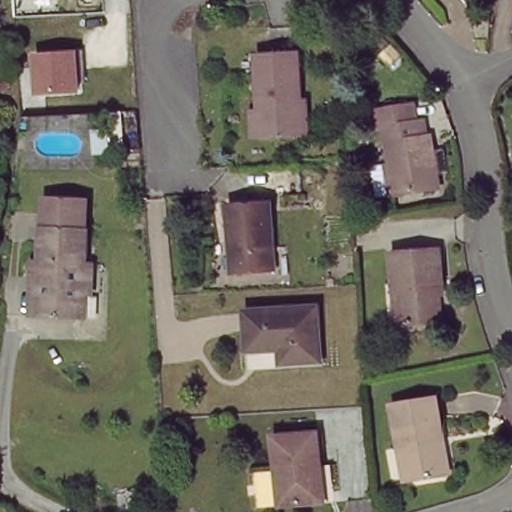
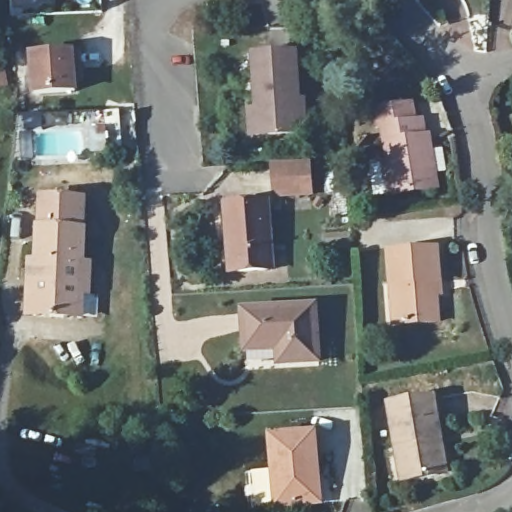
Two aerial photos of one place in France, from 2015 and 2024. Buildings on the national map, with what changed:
unchanged [(360,0),(361,2),(351,8),(346,0),(360,0)]
unchanged [(376,50),(371,45),(380,38),(390,48),(387,50),(381,56),(376,50)]
unchanged [(30,51),(76,48),(77,93),(32,95),(30,51)]
unchanged [(244,114),(252,113),(248,52),(285,50),(289,108),(299,108),(301,134),(261,136),(245,137),(244,114)]
unchanged [(372,198),(371,187),(368,164),(390,161),(388,146),(394,146),(392,126),(381,128),(379,109),(412,106),(414,124),(422,124),(424,140),(429,140),(436,191),(372,198)]
new [(310,160),(314,196),(271,199),(268,163),(310,160)]
unchanged [(87,194),(82,255),(87,255),(82,310),(28,307),(33,251),(37,251),(42,191),(87,194)]
unchanged [(265,273),(229,273),(229,241),(221,241),(221,204),(266,204),(265,273)]
unchanged [(389,286),(385,254),(433,249),(436,279),(430,280),(433,320),(398,323),(392,324),(389,286)]
unchanged [(276,348),(246,351),(245,336),(244,310),(316,305),(318,339),(319,359),(289,361),(277,362),(276,348)]
unchanged [(433,475),(417,478),(397,482),(396,477),(384,406),(428,398),(435,441),(440,474),(433,475)]
unchanged [(305,502),(268,504),(265,465),(262,433),(308,431),(310,468),(313,501),(305,502)]

